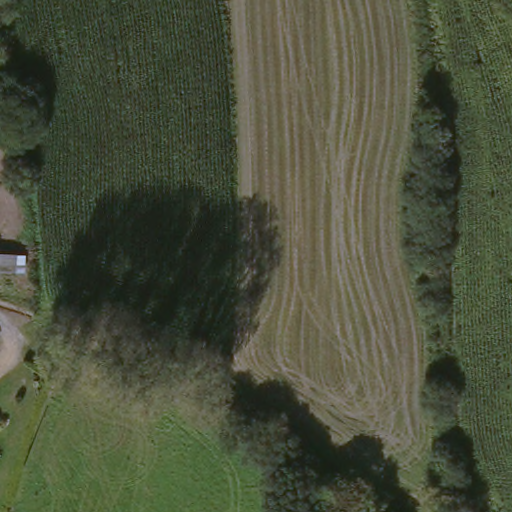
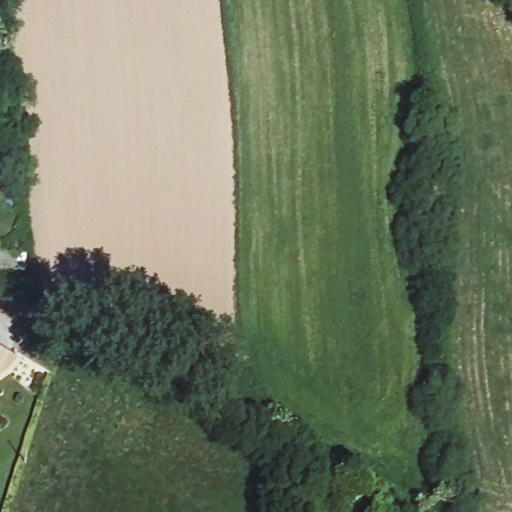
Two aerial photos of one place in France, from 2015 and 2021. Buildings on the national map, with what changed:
unchanged [(16,272),(0,272),(0,254),(17,254),(16,272)]

